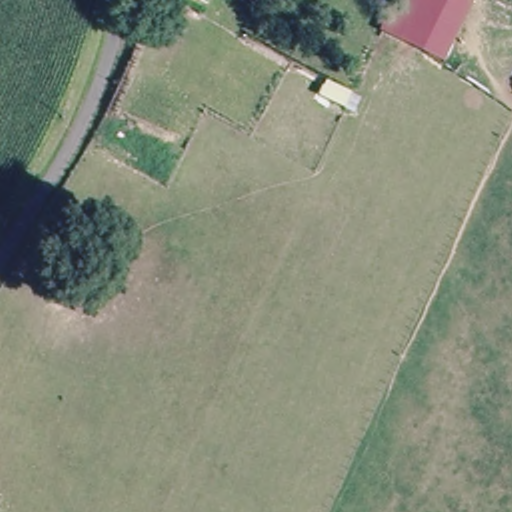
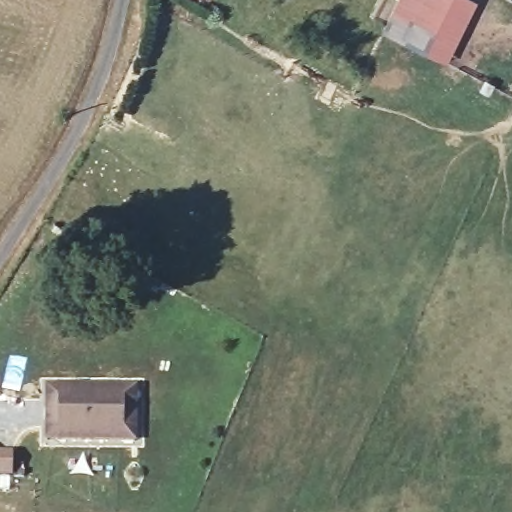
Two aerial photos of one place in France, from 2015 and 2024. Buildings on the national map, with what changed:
unchanged [(428,0),(408,43),(379,30),(392,0),(428,0)]
unchanged [(408,43),(428,0),(476,0),(446,63),(408,43)]
new [(47,439),(47,435),(47,390),(47,386),(135,384),(135,389),(136,434),(136,438),(47,439)]

